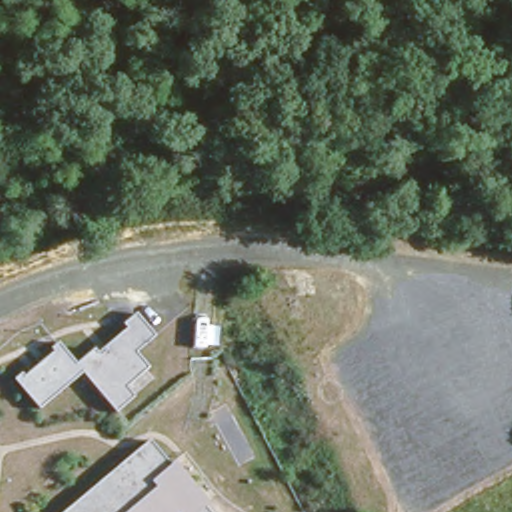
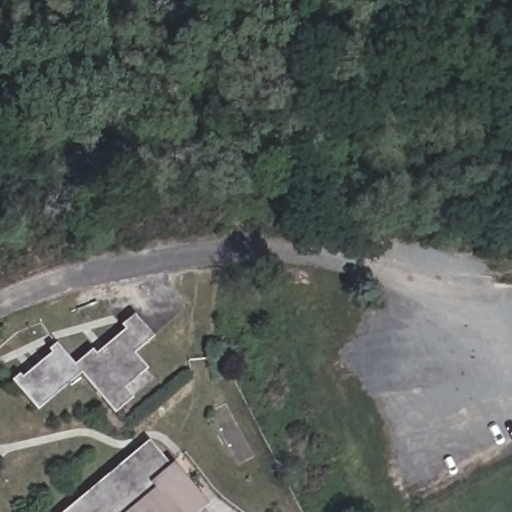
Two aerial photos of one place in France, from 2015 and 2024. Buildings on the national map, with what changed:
unchanged [(156,341),(139,355),(151,370),(128,387),(137,397),(114,415),(82,375),(39,412),(8,380),(24,366),(28,371),(48,355),(44,349),(54,340),(75,362),(94,346),(96,348),(126,327),(123,325),(134,315),(156,341)]
unchanged [(206,506),(203,508),(206,512),(60,512),(147,437),(171,465),(206,506)]

